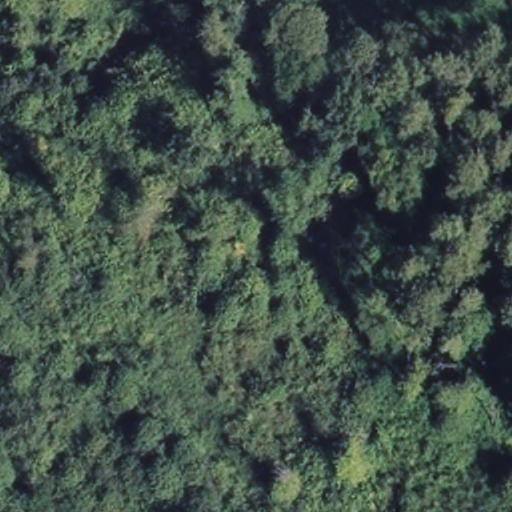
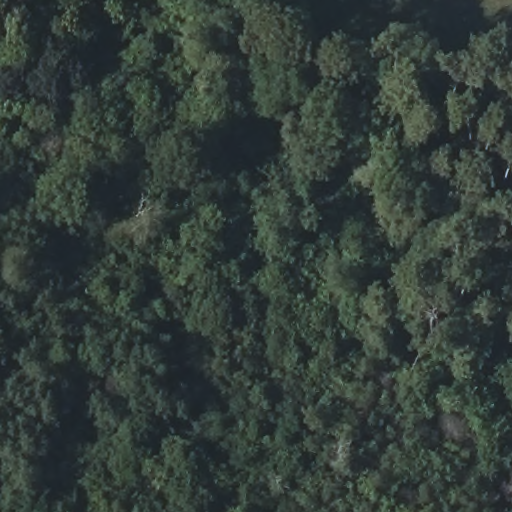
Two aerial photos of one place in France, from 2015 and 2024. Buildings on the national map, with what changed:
[]

